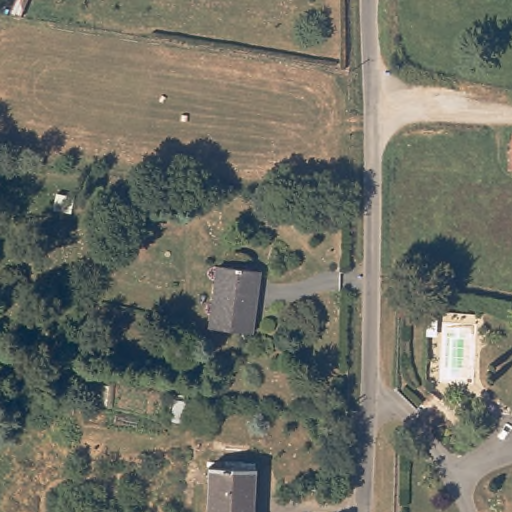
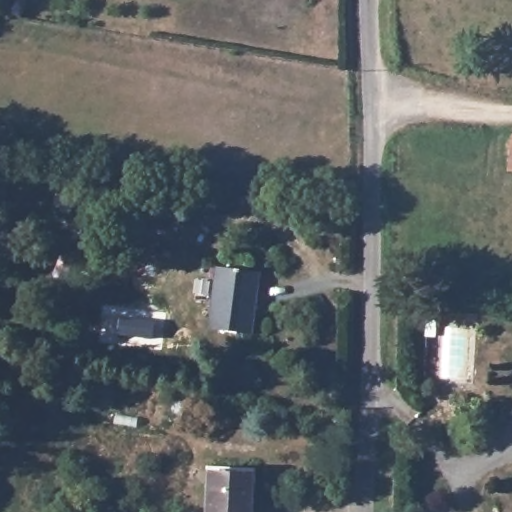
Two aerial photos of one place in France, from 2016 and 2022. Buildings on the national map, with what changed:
unchanged [(511,177),(512,157),(512,177),(511,177)]
unchanged [(223,259),(262,262),(256,325),(217,322),(223,259)]
unchanged [(256,462),(255,512),(211,512),(213,462),(256,462)]

